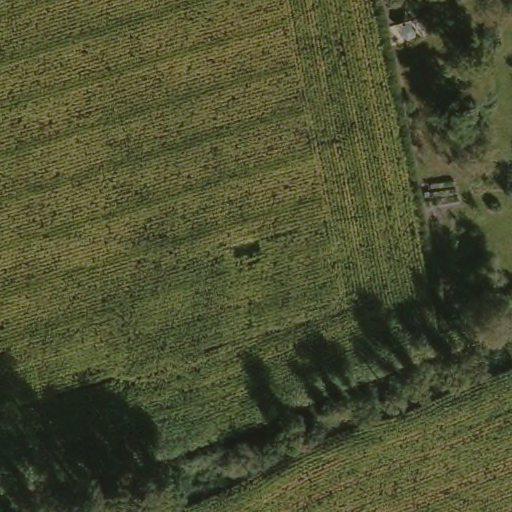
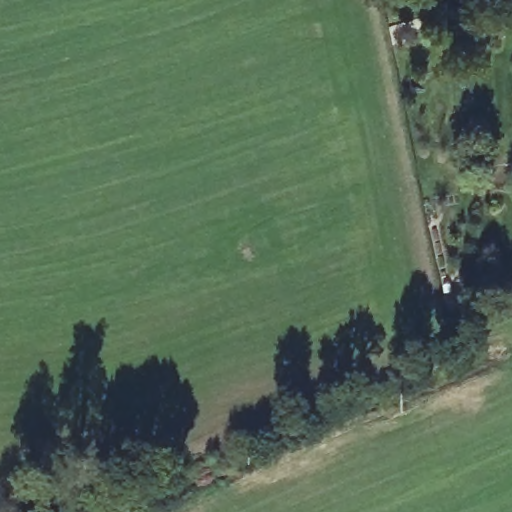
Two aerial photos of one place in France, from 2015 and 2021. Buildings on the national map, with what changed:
[]

